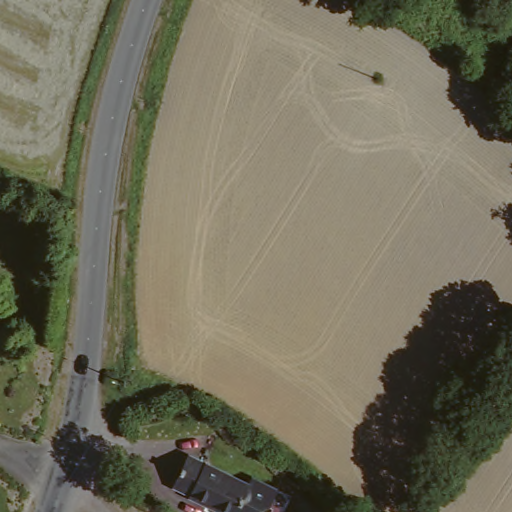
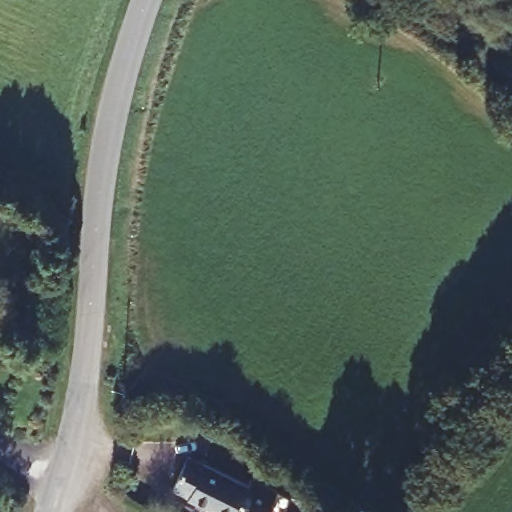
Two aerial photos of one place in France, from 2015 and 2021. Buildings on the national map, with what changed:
unchanged [(246,485),(250,478),(276,491),(268,507),(263,511),(262,512),(214,512),(189,501),(189,500),(171,492),(186,459),(246,485)]

